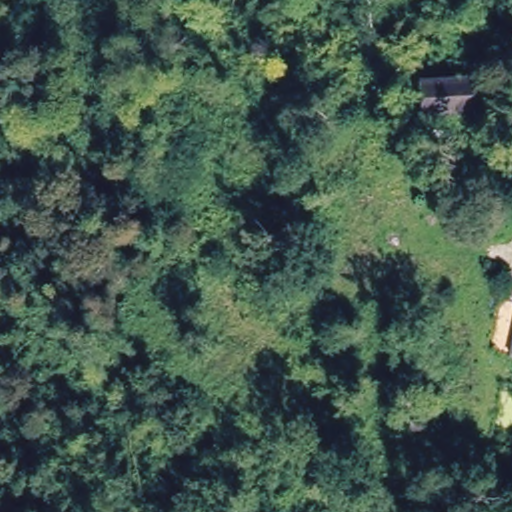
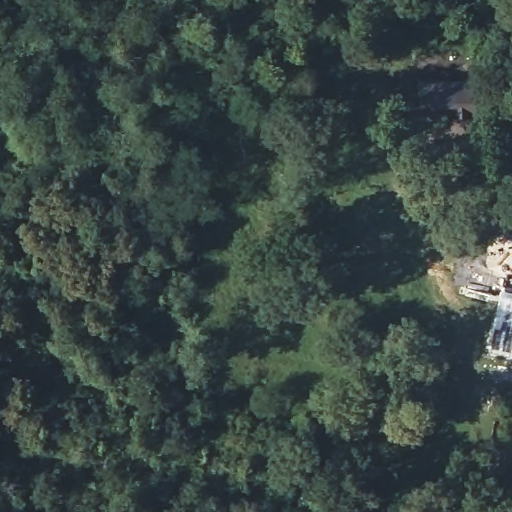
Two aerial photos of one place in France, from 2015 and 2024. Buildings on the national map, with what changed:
unchanged [(474,84),(476,115),(419,118),(417,84),(474,84)]

